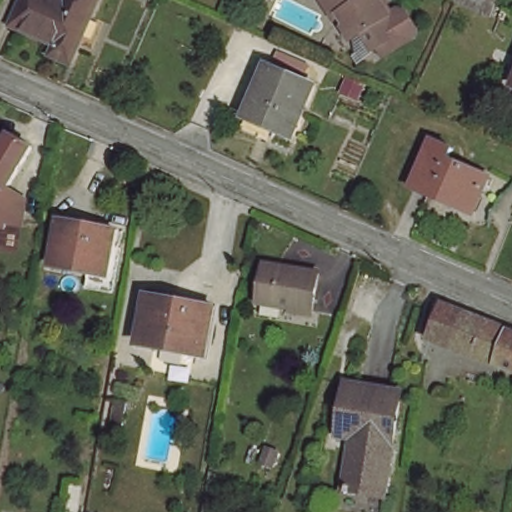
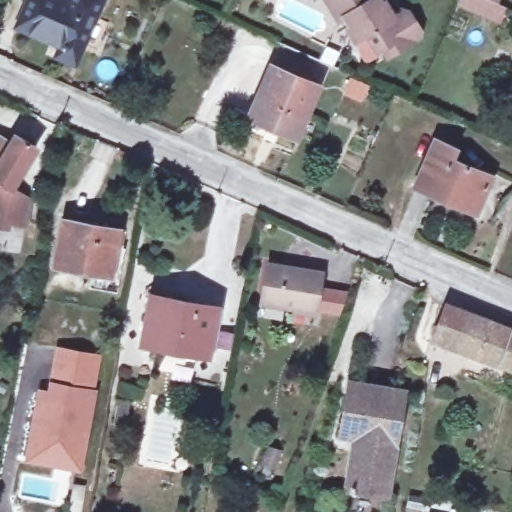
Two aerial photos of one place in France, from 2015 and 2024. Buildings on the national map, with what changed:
unchanged [(50,50),(55,39),(17,23),(27,0),(69,0),(70,0),(71,0),(99,0),(73,59),(50,50)]
unchanged [(352,44),(336,21),(331,24),(313,0),(368,0),(365,2),(370,9),(375,5),(384,18),(392,12),(399,13),(412,31),(411,38),(402,45),(395,43),(392,39),(372,54),(363,60),(352,44)]
unchanged [(494,10),(465,0),(497,0),(494,10)]
unchanged [(317,86),(296,136),(247,115),(269,65),(317,86)]
unchanged [(10,141),(14,135),(34,147),(10,191),(29,201),(25,221),(24,225),(15,223),(9,222),(9,224),(8,227),(0,226),(0,134),(10,141)]
unchanged [(418,186),(435,142),(458,151),(455,162),(494,179),(482,212),(418,186)]
unchanged [(123,231),(113,278),(57,267),(65,220),(123,231)]
unchanged [(324,274),(317,313),(269,304),(274,266),(324,274)]
unchanged [(221,307),(212,356),(144,343),(152,294),(221,307)]
unchanged [(442,303),(512,333),(512,371),(427,334),(442,303)]
new [(55,344),(103,353),(99,388),(48,379),(55,344)]
new [(38,386),(46,388),(48,379),(99,388),(84,471),(25,461),(38,386)]
unchanged [(345,487),(353,437),(339,435),(349,381),(403,390),(385,494),(345,487)]

